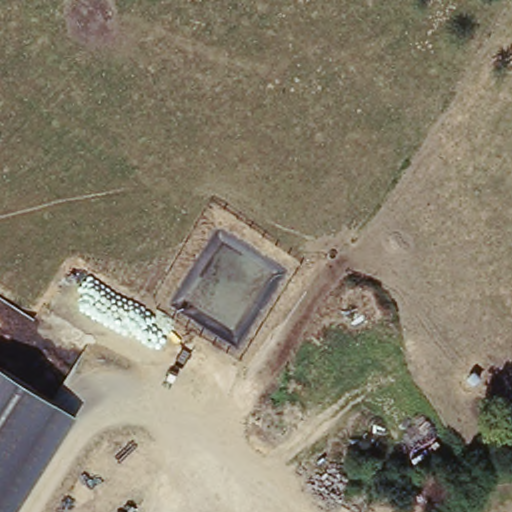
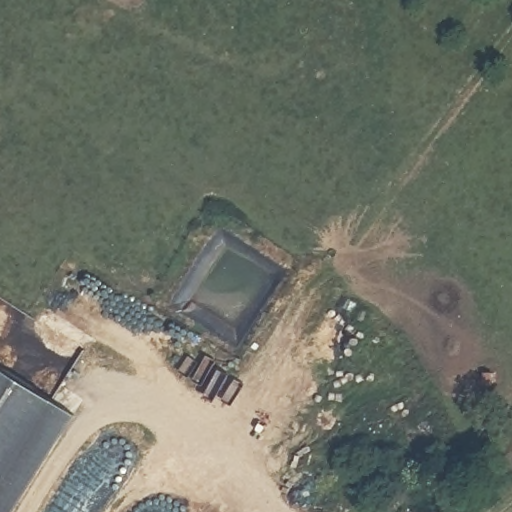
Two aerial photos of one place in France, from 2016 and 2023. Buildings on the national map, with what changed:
unchanged [(0,512),(0,361),(79,412),(16,512),(0,512)]

